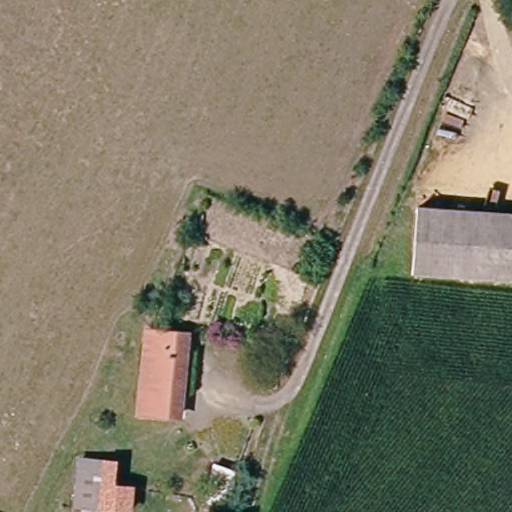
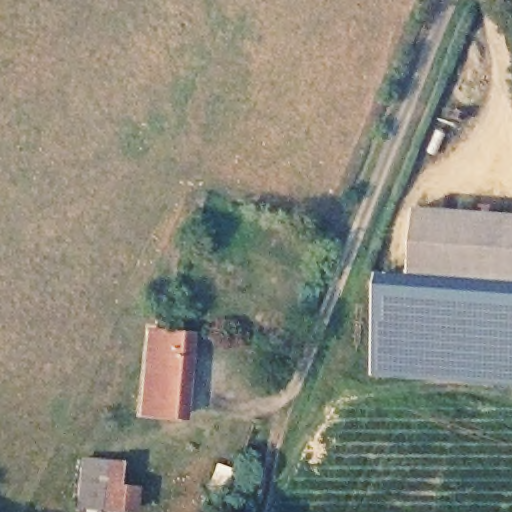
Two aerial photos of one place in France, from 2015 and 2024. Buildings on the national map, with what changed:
unchanged [(512,215),(512,280),(411,269),(418,204),(512,215)]
new [(512,280),(512,385),(374,375),(382,271),(411,272),(411,269),(512,280)]
unchanged [(194,333),(188,395),(184,394),(182,416),(145,412),(153,330),(194,333)]
unchanged [(81,505),(84,459),(121,461),(119,486),(138,488),(137,509),(81,505)]

